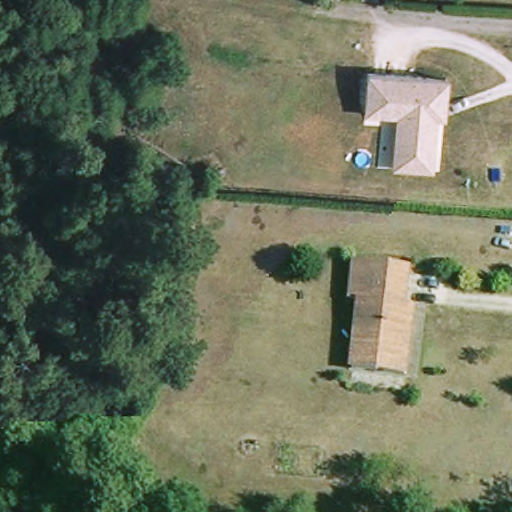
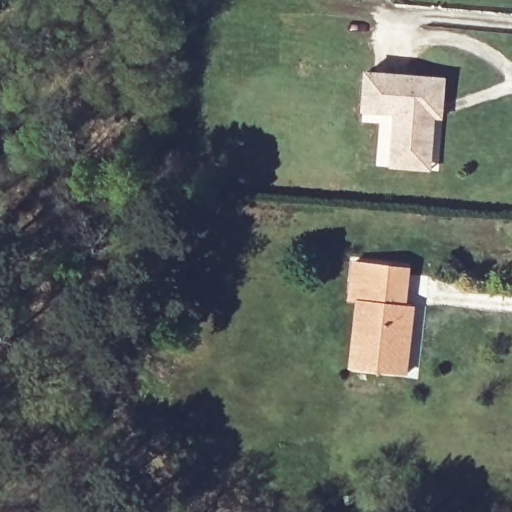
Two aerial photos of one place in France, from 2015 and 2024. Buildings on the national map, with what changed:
unchanged [(394,168),(396,153),(397,139),(399,115),(367,112),(371,73),(449,80),(447,104),(446,120),(439,119),(436,141),(435,156),(434,171),(394,168)]
unchanged [(359,300),(363,261),(400,265),(420,267),(419,277),(416,303),(426,305),(419,373),(363,366),(365,345),(369,300),(359,300)]

